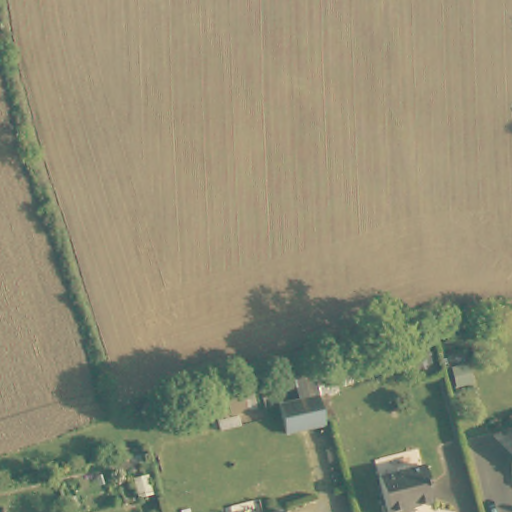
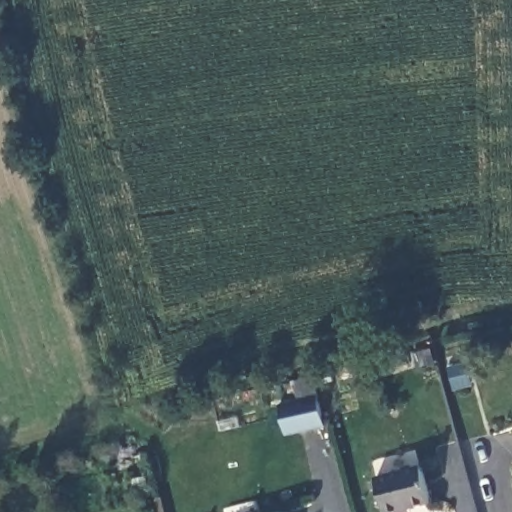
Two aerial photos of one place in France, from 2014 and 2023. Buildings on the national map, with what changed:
unchanged [(321,367),(331,397),(291,408),(282,378),(321,367)]
unchanged [(434,496),(412,503),(414,508),(401,512),(391,512),(379,475),(423,461),(434,496)]
unchanged [(286,512),(269,512),(285,507),(286,512)]

